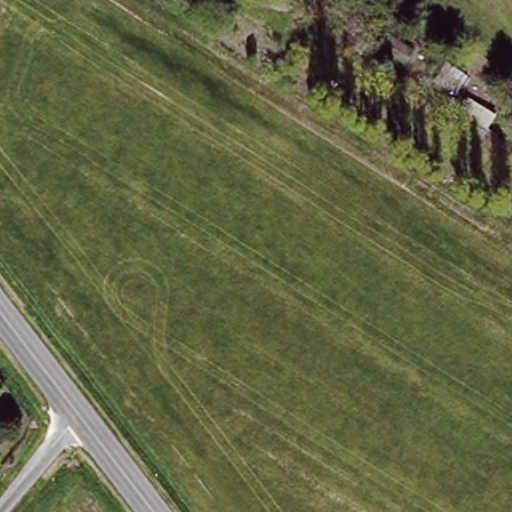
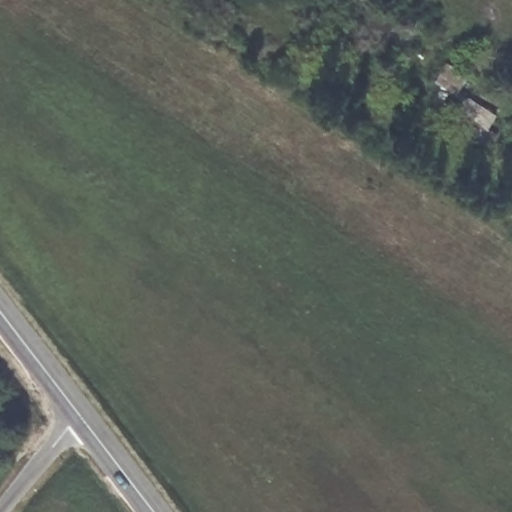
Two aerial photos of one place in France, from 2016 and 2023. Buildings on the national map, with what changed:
unchanged [(345,50),(341,56),(310,37),(318,25),(343,41),(349,45),(345,50)]
unchanged [(431,83),(442,64),(464,74),(455,91),(431,83)]
unchanged [(468,101),(494,117),(479,143),(453,126),(468,101)]

